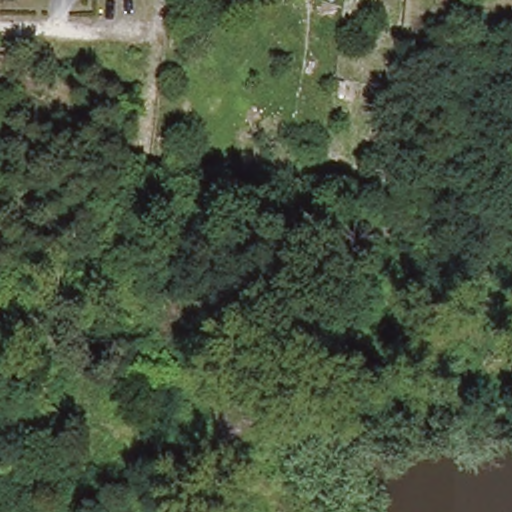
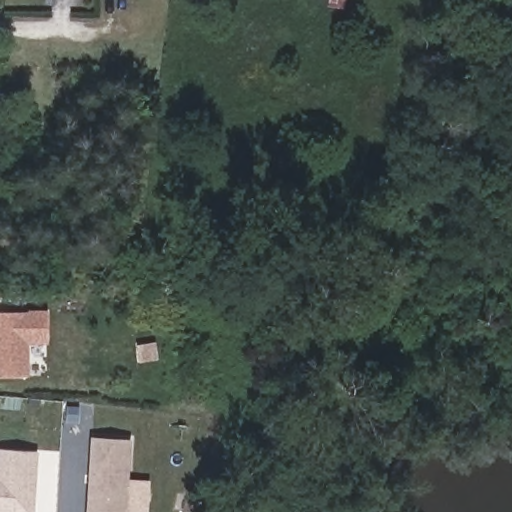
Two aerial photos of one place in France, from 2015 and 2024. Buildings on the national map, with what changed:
new [(48,343),(27,343),(27,377),(0,377),(0,313),(48,313),(48,343)]
new [(93,439),(131,441),(127,512),(90,512),(93,439)]
new [(31,512),(0,512),(0,450),(33,451),(31,512)]

